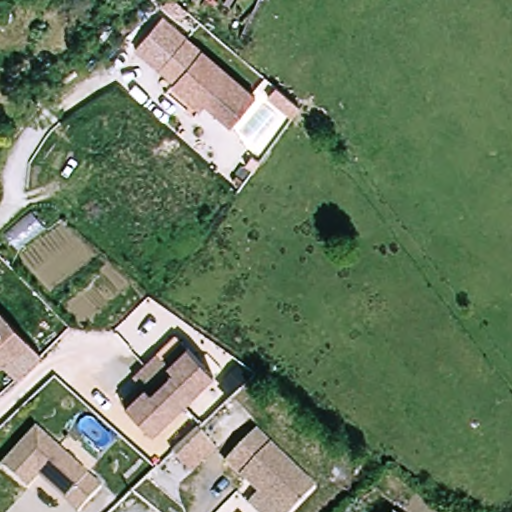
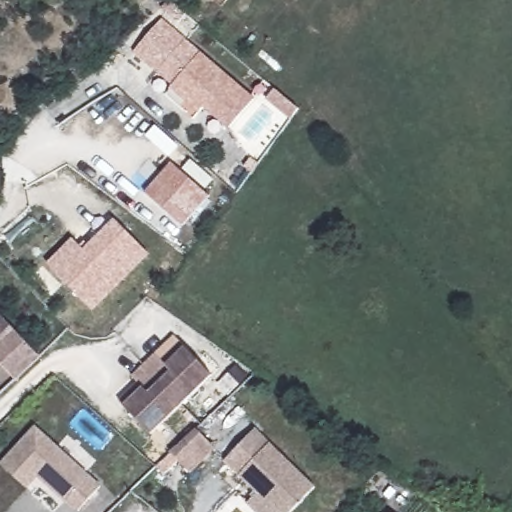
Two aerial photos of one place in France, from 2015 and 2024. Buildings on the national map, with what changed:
unchanged [(133,50),(159,17),(184,37),(158,70),(133,50)]
unchanged [(172,86),(173,83),(158,70),(184,37),(254,96),(231,125),(204,104),(200,109),(172,86)]
unchanged [(260,160),(253,169),(246,163),(253,154),(260,160)]
new [(183,172),(192,160),(215,181),(206,192),(211,197),(184,227),(146,193),(173,163),(183,172)]
new [(58,274),(48,262),(73,239),(83,250),(114,219),(151,255),(93,311),(58,274)]
unchanged [(15,382),(0,367),(0,317),(39,358),(15,382)]
unchanged [(138,383),(131,376),(144,365),(156,354),(161,361),(181,343),(186,348),(211,376),(181,404),(149,434),(123,406),(118,401),(138,383)]
unchanged [(214,446),(189,469),(171,451),(183,440),(189,434),(196,427),(214,446)]
unchanged [(248,502),(259,491),(226,460),(256,428),(316,486),(291,512),(259,512),(248,502)]
unchanged [(31,491),(8,467),(41,431),(105,491),(85,512),(80,512),(70,503),(44,477),(31,491)]

